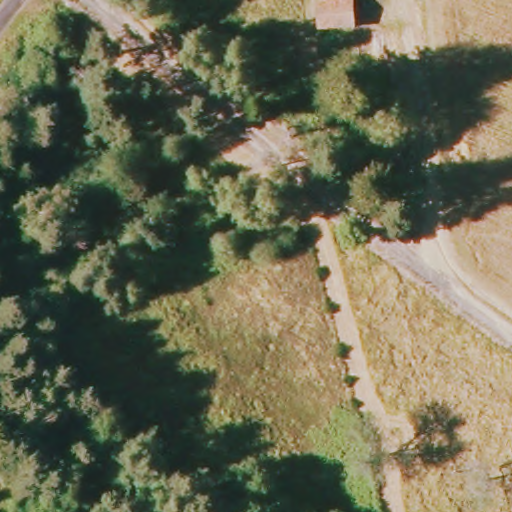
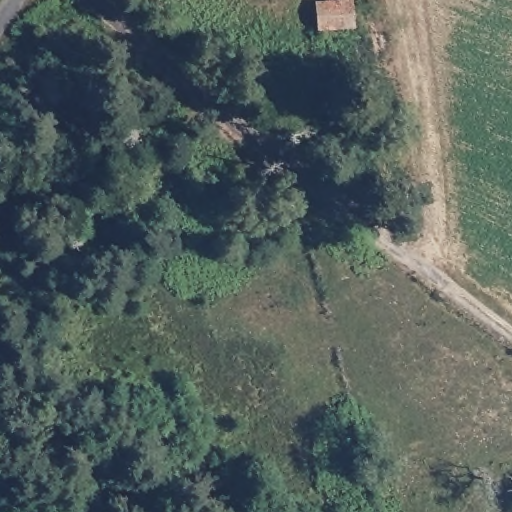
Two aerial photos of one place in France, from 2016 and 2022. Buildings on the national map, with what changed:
unchanged [(313,26),(312,4),(335,3),(335,0),(348,0),(350,26),(313,26)]

